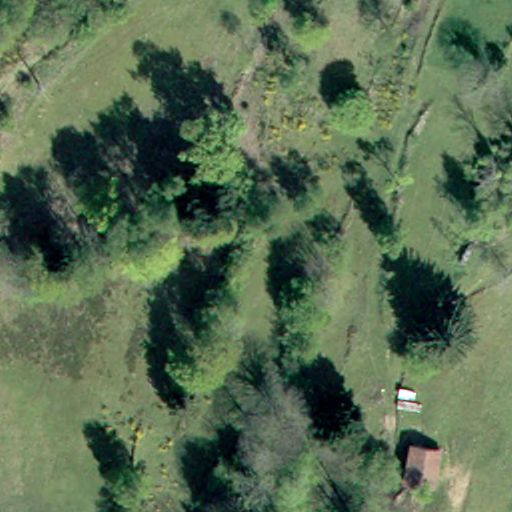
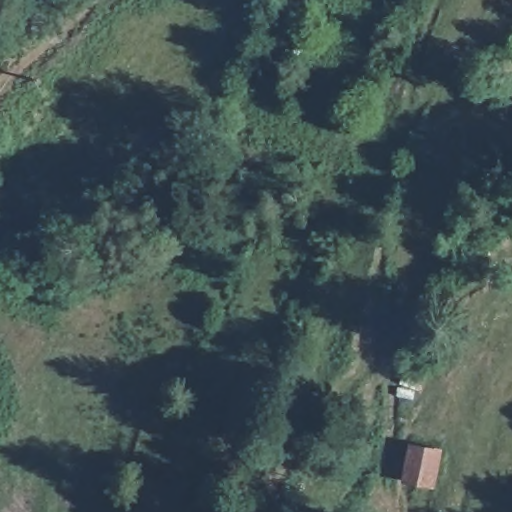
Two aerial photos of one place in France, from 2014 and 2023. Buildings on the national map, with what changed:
unchanged [(410,482),(418,445),(445,455),(435,492),(410,482)]

